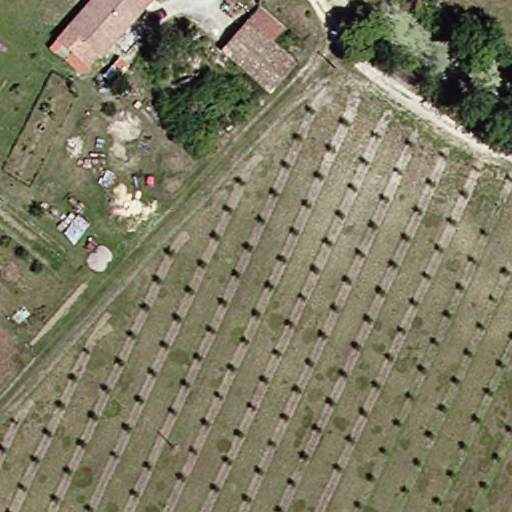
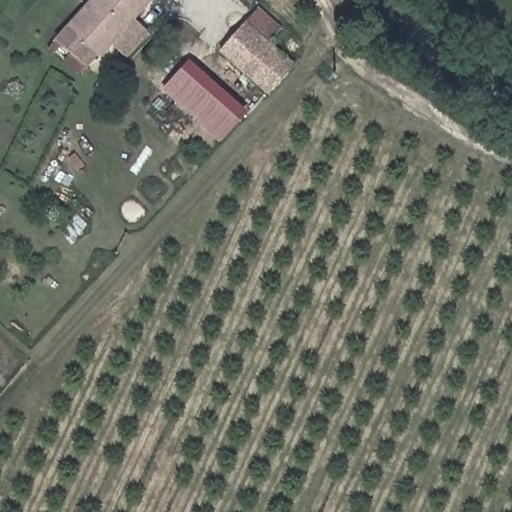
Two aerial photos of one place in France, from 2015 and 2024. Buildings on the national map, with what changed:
unchanged [(70,31),(99,0),(163,0),(116,50),(113,48),(101,60),(92,54),(70,31)]
unchanged [(234,50),(270,9),(290,27),(278,40),(306,67),(278,94),(234,50)]
new [(190,60),(247,113),(220,143),(161,89),(190,60)]

